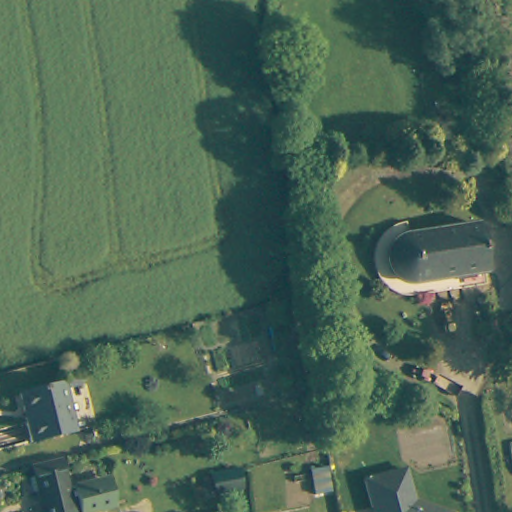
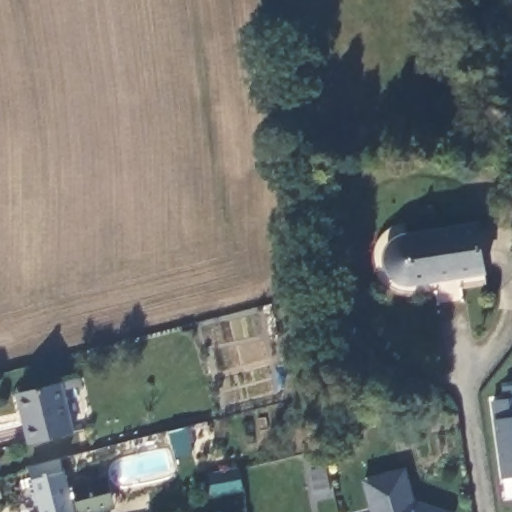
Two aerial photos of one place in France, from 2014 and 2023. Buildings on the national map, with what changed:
unchanged [(385,236),(395,228),(407,225),(410,238),(485,226),(492,277),(495,290),(408,301),(391,296),(381,285),(375,274),(374,262),(376,249),(385,236)]
unchanged [(310,331),(320,381),(306,384),(297,333),(310,331)]
unchanged [(51,383),(68,380),(79,428),(62,432),(19,441),(15,426),(8,393),(51,383)]
new [(503,386),(512,385),(512,477),(502,479),(493,417),(491,399),(505,397),(503,386)]
unchanged [(22,477),(32,476),(30,465),(61,458),(71,512),(41,512),(37,492),(25,494),(22,477)]
unchanged [(98,512),(80,512),(74,485),(110,476),(117,507),(98,512)]
unchanged [(372,512),(365,490),(405,477),(415,508),(427,512),(372,512)]
unchanged [(334,502),(318,504),(315,480),(331,478),(334,502)]

